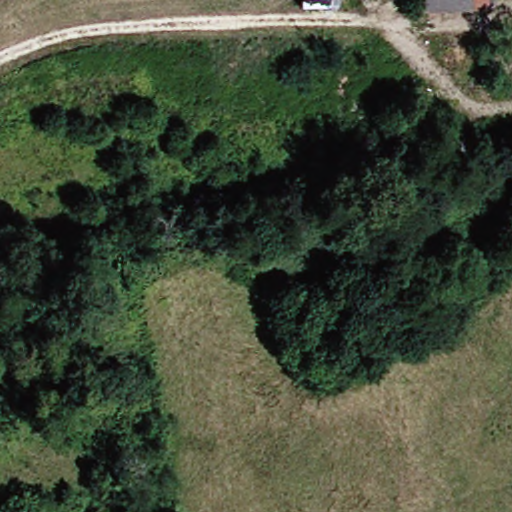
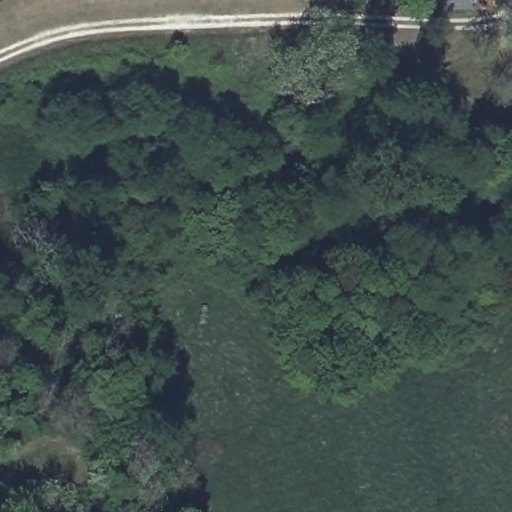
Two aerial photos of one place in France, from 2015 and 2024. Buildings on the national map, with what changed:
unchanged [(406,14),(406,0),(476,0),(476,14),(406,14)]

